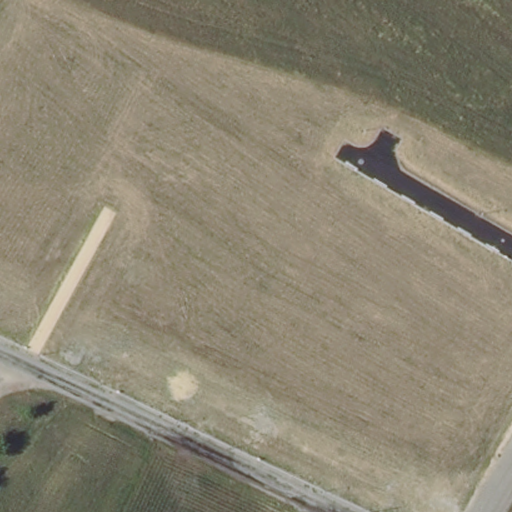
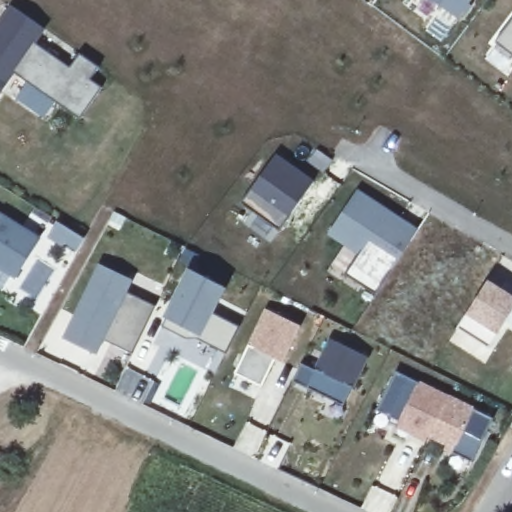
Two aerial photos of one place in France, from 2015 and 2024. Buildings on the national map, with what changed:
new [(431,0),(473,0),(460,20),(431,0)]
new [(57,101),(45,119),(17,99),(30,83),(17,73),(0,97),(0,22),(11,6),(46,30),(35,45),(71,69),(81,55),(98,67),(89,79),(102,88),(80,118),(57,101)]
new [(495,44),(512,21),(512,56),(495,44)]
new [(290,215),(253,189),(277,155),(315,182),(290,215)]
new [(357,190),(418,231),(375,295),(345,277),(356,257),(327,237),(357,190)]
new [(15,281),(0,272),(0,214),(41,239),(15,281)]
new [(132,353),(105,340),(98,354),(64,339),(100,264),(135,281),(128,294),(155,309),(132,353)]
new [(227,353),(199,339),(182,337),(164,327),(167,316),(189,269),(227,289),(214,315),(239,328),(227,353)]
new [(487,282),(501,290),(505,284),(512,288),(512,327),(505,324),(490,350),(456,332),(487,282)]
new [(266,309),(302,326),(284,362),(275,358),(260,385),(237,374),(266,309)]
new [(345,408),(295,384),(304,366),(319,373),(333,343),(367,359),(345,408)]
new [(472,463),(444,450),(446,446),(427,436),(425,442),(398,429),(400,422),(378,410),(397,372),(420,383),(422,381),(477,407),(475,410),(494,418),(472,463)]

